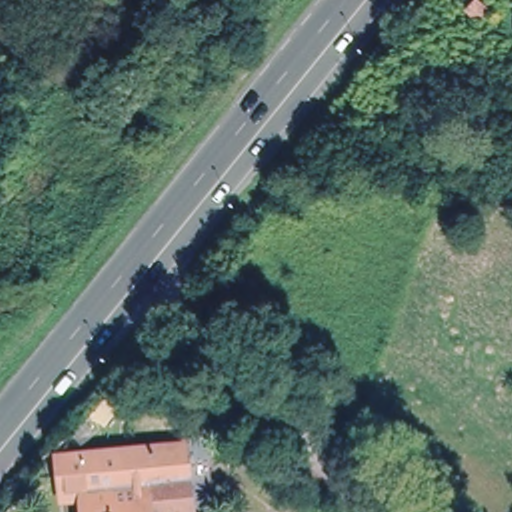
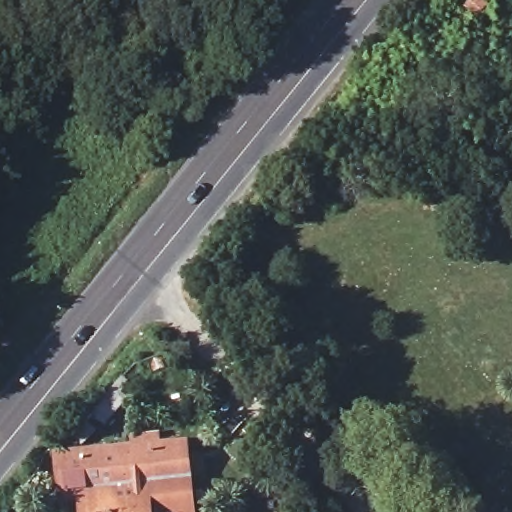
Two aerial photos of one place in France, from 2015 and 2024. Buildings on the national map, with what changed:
unchanged [(487,9),(478,20),(468,12),(477,1),(487,9)]
unchanged [(91,495),(71,496),(67,460),(186,449),(192,512),(92,512),(91,495)]

